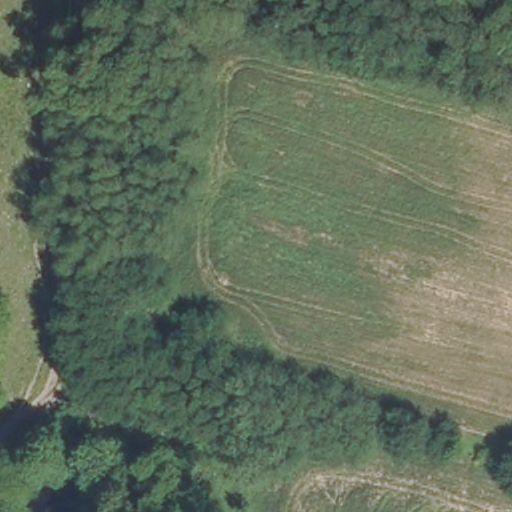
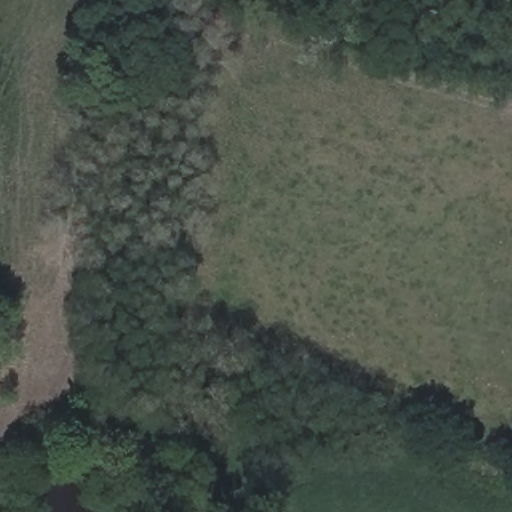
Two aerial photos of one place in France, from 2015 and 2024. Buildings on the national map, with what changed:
[]

